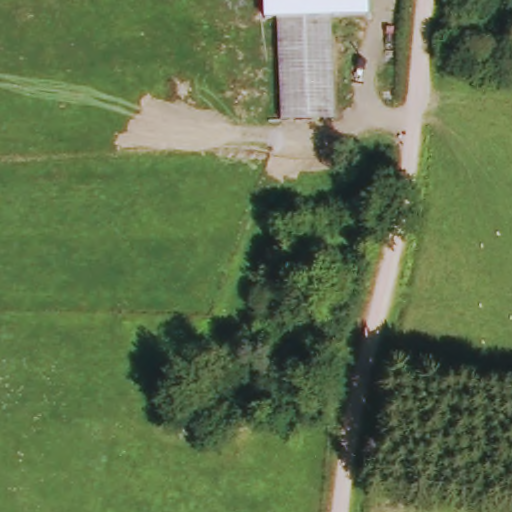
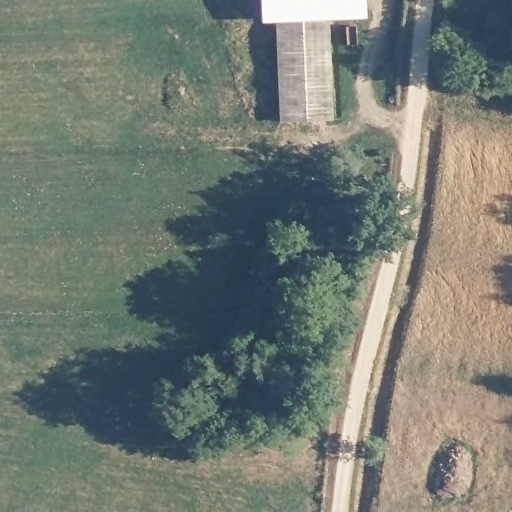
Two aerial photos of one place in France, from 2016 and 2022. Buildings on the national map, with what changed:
unchanged [(341,21),(330,21),(332,123),(283,126),(279,22),(265,22),(264,0),(364,0),(365,20),(341,21)]

